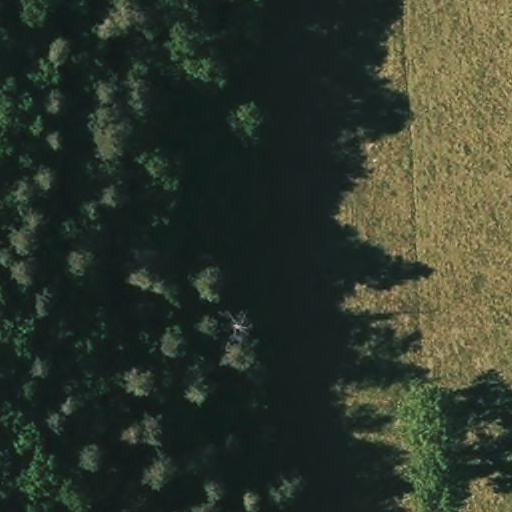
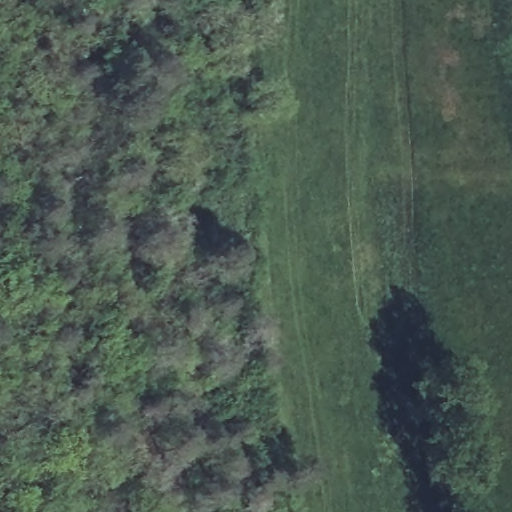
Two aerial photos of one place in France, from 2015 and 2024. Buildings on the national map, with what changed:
[]

